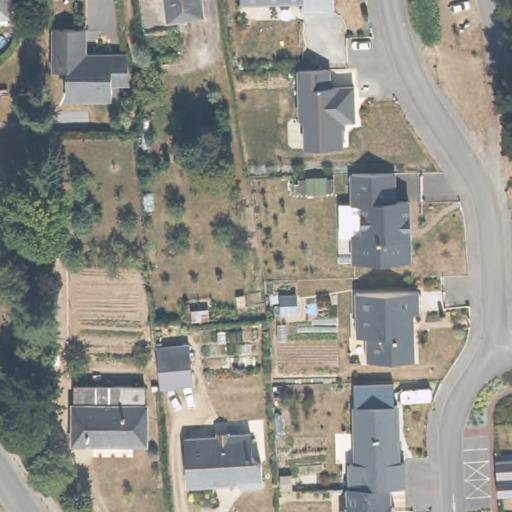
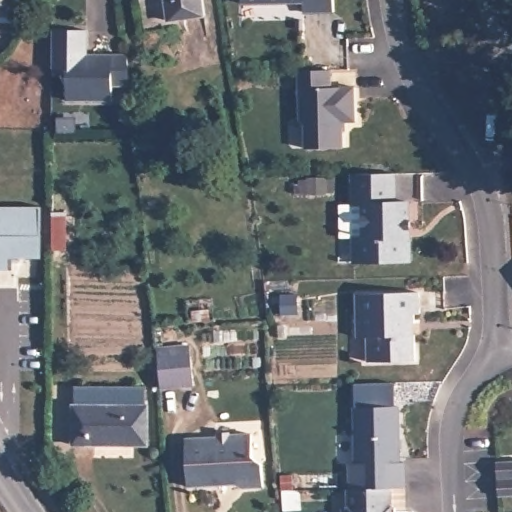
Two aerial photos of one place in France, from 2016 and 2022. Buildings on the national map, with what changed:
unchanged [(10,0),(10,8),(0,7),(0,0),(10,0)]
unchanged [(189,12),(189,19),(145,26),(143,0),(204,0),(205,9),(189,12)]
unchanged [(302,24),(301,4),(242,4),(242,0),(333,0),(333,22),(302,24)]
unchanged [(132,79),(115,79),(115,94),(70,94),(70,66),(55,66),(55,54),(55,24),(88,24),(89,54),(96,54),(96,49),(115,49),(129,49),(132,79)]
unchanged [(334,70),(334,90),(355,90),(356,124),(341,125),(341,148),(303,149),(297,69),(334,70)]
unchanged [(352,262),(350,235),(362,234),(362,205),(351,204),(351,174),(396,173),(397,199),(410,199),(412,259),(352,262)]
new [(42,207),(41,259),(12,259),(12,270),(0,270),(0,206),(42,207)]
unchanged [(415,294),(416,364),(357,367),(355,294),(415,294)]
unchanged [(155,348),(188,346),(191,386),(159,389),(155,348)]
unchanged [(145,446),(67,444),(67,406),(70,404),(69,384),(143,384),(145,446)]
unchanged [(399,462),(407,462),(407,485),(395,486),(352,489),(348,489),(349,463),(355,463),(353,403),(399,402),(399,462)]
unchanged [(215,439),(228,439),(229,436),(252,434),(253,456),(264,464),(264,486),(243,488),(238,484),(238,482),(221,482),(219,484),(189,486),(187,441),(215,439)]
unchanged [(492,459),(512,459),(512,494),(494,494),(492,459)]
unchanged [(395,486),(397,512),(352,512),(352,489),(395,486)]

